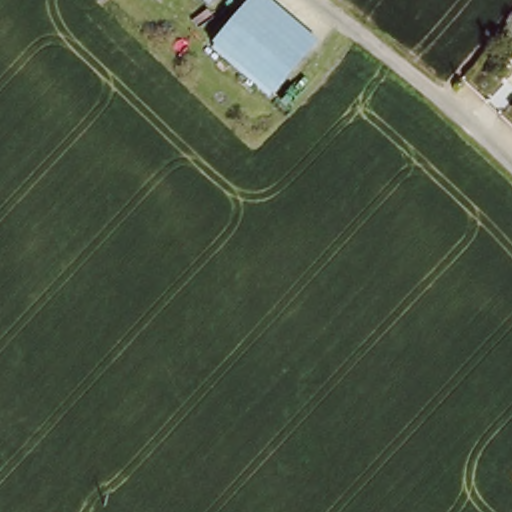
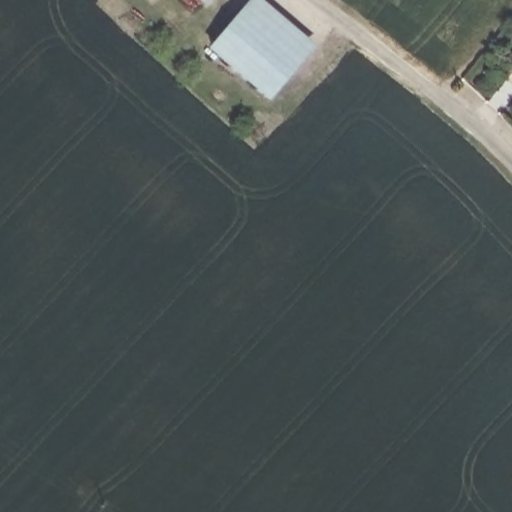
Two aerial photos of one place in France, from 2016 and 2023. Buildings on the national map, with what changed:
unchanged [(216,0),(219,0),(218,1),(216,0)]
unchanged [(255,0),(275,0),(319,39),(307,54),(275,94),(217,44),(251,5),(255,0)]

